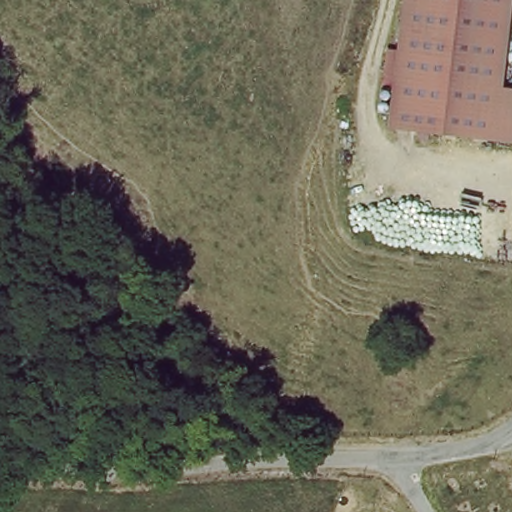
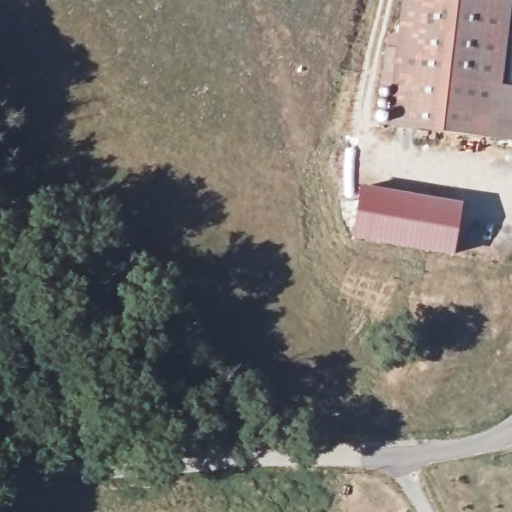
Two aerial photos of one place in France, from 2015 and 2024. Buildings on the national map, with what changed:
unchanged [(412,0),(511,0),(498,91),(512,94),(512,144),(393,127),(412,0)]
new [(454,257),(352,239),(362,187),(462,205),(454,257)]

